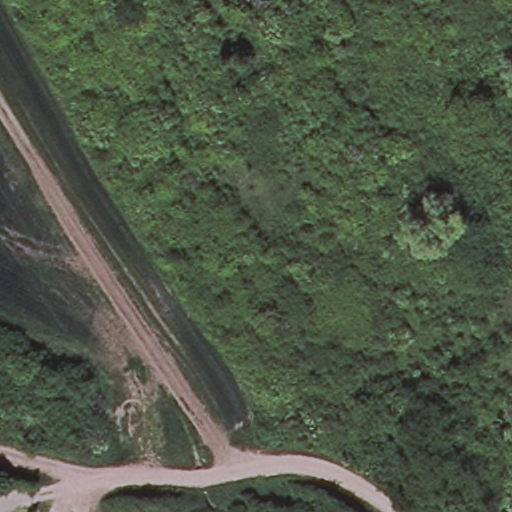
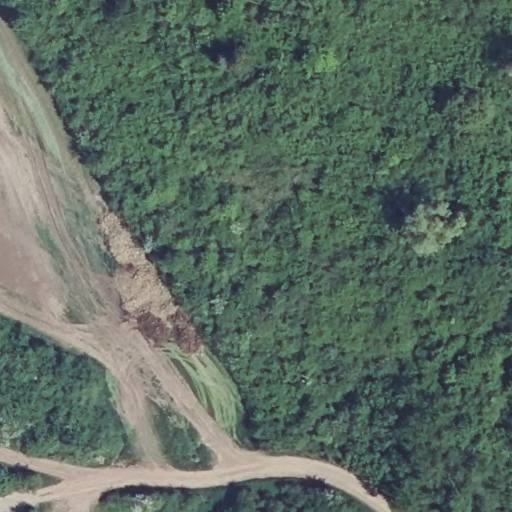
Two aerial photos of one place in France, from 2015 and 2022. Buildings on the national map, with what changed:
unchanged [(287,0),(270,31),(234,7),(240,0),(287,0)]

